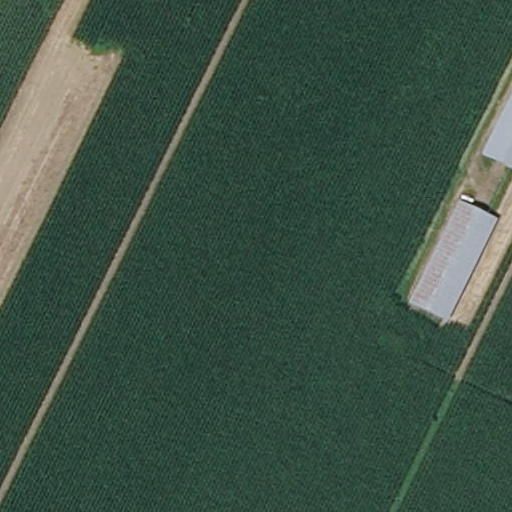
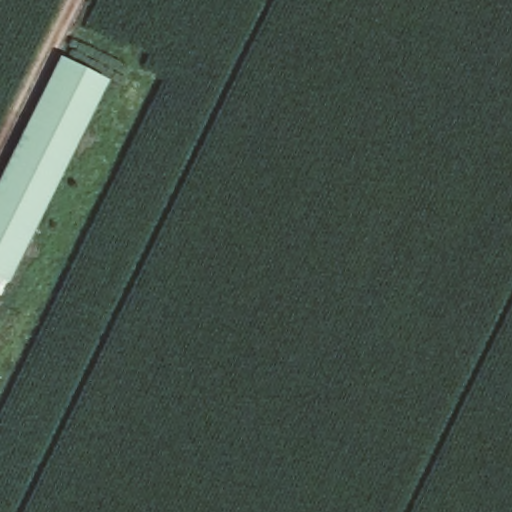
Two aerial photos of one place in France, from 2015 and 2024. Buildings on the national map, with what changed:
new [(62,66),(105,86),(7,287),(0,284),(0,192),(62,66)]
demolished [(512,84),(512,173),(477,158),(512,84)]
demolished [(495,222),(447,320),(404,298),(454,200),(495,222)]

